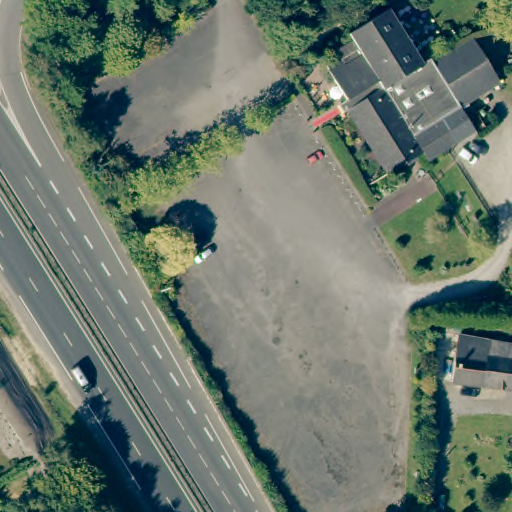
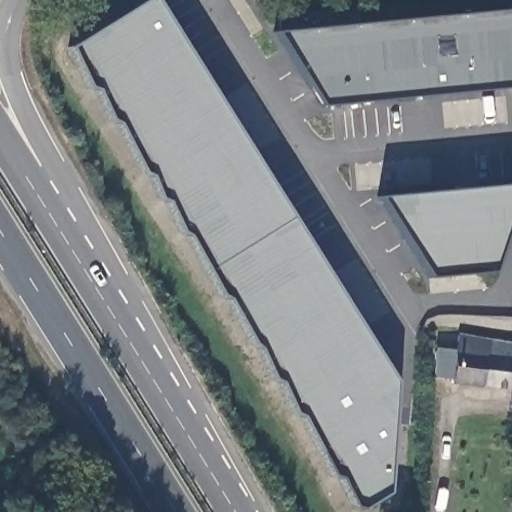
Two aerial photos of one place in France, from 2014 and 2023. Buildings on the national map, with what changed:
new [(387,493),(361,509),(354,506),(340,479),(331,476),(301,417),(292,413),(279,385),(271,379),(259,352),(252,345),(226,301),(216,296),(188,237),(180,232),(168,203),(159,199),(151,178),(142,172),(118,124),(110,120),(96,90),(88,88),(68,47),(145,0),(155,0),(395,381),(387,493)]
demolished [(410,2),(438,49),(422,59),(419,56),(408,62),(383,20),(410,2)]
new [(321,106),(274,32),(512,9),(512,88),(321,106)]
demolished [(450,107),(465,132),(417,161),(412,152),(377,173),(339,109),(342,107),(319,68),(334,59),(328,48),(344,38),(340,32),(376,9),(383,20),(408,62),(419,56),(422,59),(438,49),(469,96),(450,107)]
new [(492,272),(431,278),(378,196),(512,184),(512,214),(492,272)]
unchanged [(512,352),(512,396),(448,388),(453,341),(512,352)]

